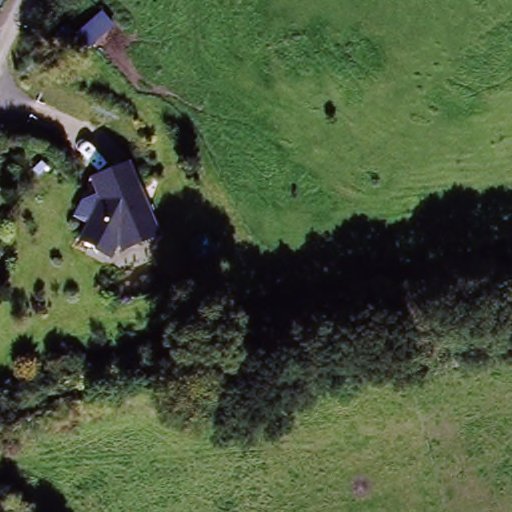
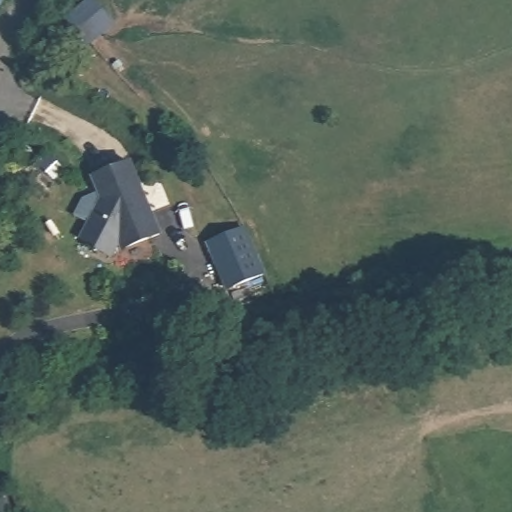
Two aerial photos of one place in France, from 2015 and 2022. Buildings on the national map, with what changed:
unchanged [(0,11),(0,0),(5,0),(0,11)]
unchanged [(104,266),(89,257),(87,253),(74,246),(89,217),(98,213),(85,184),(122,168),(154,241),(134,249),(116,257),(113,248),(104,266)]
new [(207,249),(244,234),(264,280),(227,295),(207,249)]

